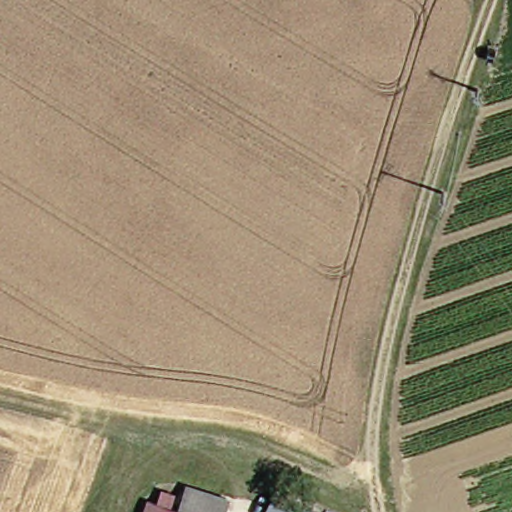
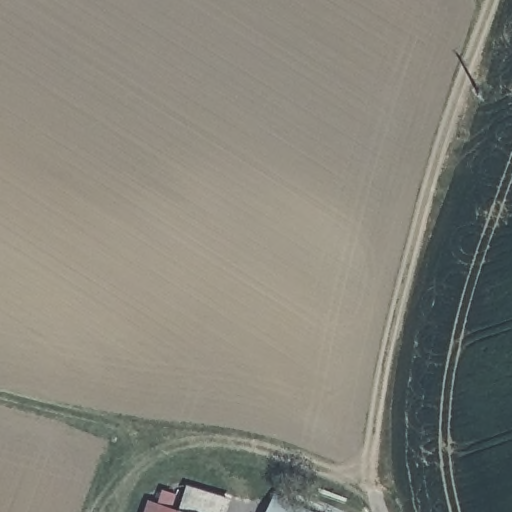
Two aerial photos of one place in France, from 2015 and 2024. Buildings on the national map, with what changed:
unchanged [(189,511),(197,487),(238,500),(234,512),(194,512),(189,511)]
unchanged [(275,494),(313,512),(267,512),(275,494)]
unchanged [(161,502),(189,511),(194,512),(158,512),(161,502)]

